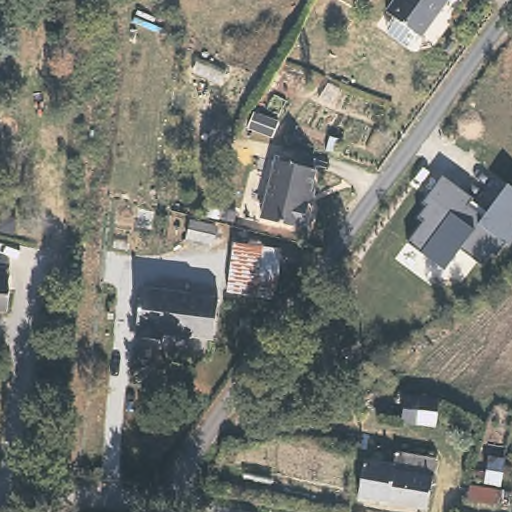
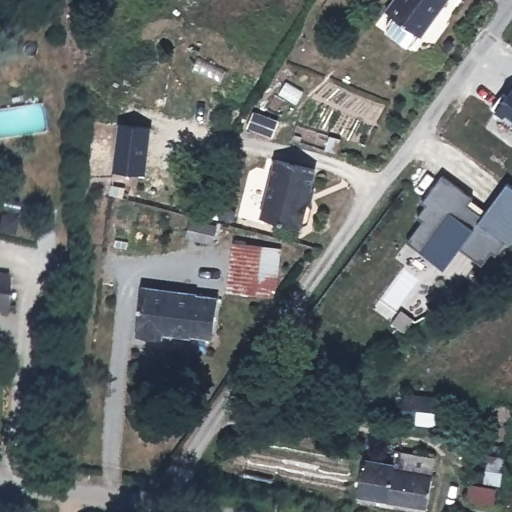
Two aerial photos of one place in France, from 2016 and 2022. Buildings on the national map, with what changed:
unchanged [(390,9),(396,0),(452,0),(428,35),(390,9)]
new [(119,121),(153,126),(145,175),(112,170),(119,121)]
unchanged [(315,174),(306,205),(308,206),(311,212),(307,227),(301,230),(300,230),(299,231),(260,220),(276,163),(315,174)]
unchanged [(496,255),(492,253),(483,265),(458,250),(445,269),(422,253),(408,241),(423,223),(419,219),(425,200),(443,177),(472,197),(467,205),(484,217),(508,184),(512,187),(512,241),(510,244),(505,242),(496,255)]
unchanged [(214,244),(186,239),(189,222),(216,227),(214,244)]
unchanged [(271,244),(266,292),(237,288),(243,242),(271,244)]
unchanged [(0,309),(0,274),(10,275),(8,289),(7,309),(0,309)]
unchanged [(217,302),(212,339),(160,331),(159,339),(134,334),(141,290),(217,302)]
unchanged [(436,405),(435,426),(400,422),(404,401),(436,405)]
unchanged [(437,457),(428,507),(355,494),(361,458),(395,463),(398,451),(437,457)]
unchanged [(507,463),(502,491),(487,489),(492,461),(507,463)]
unchanged [(499,494),(495,512),(468,506),(471,489),(499,494)]
unchanged [(476,512),(465,512),(465,509),(476,512)]

